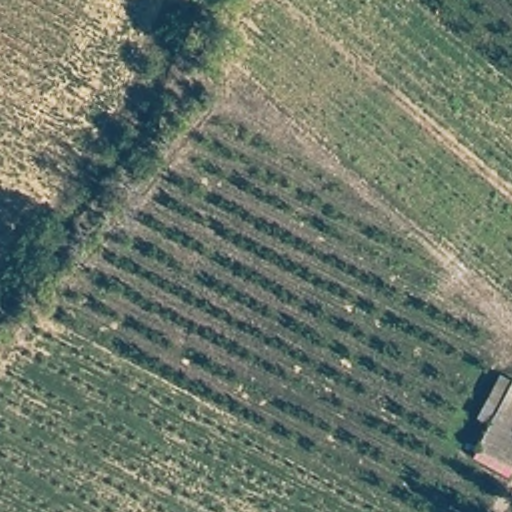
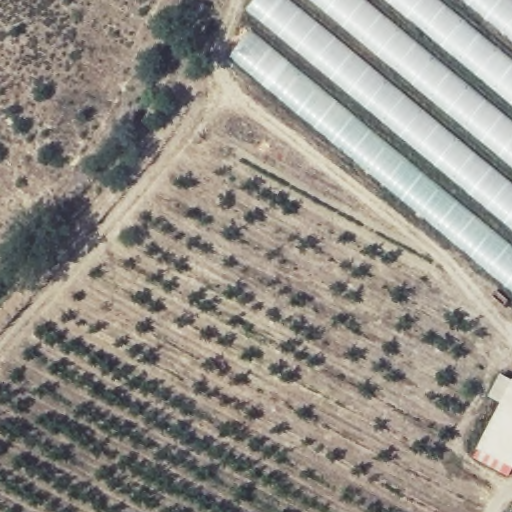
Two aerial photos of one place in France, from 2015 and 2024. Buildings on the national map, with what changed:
new [(258,22),(246,13),(255,0),(512,0),(512,292),(229,58),(258,22)]
unchanged [(478,452),(512,384),(512,469),(478,452)]

